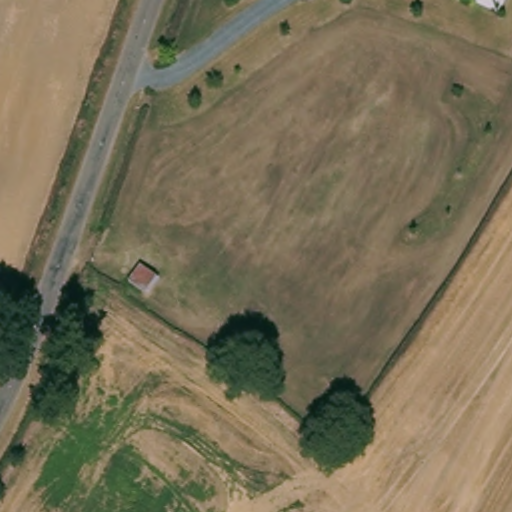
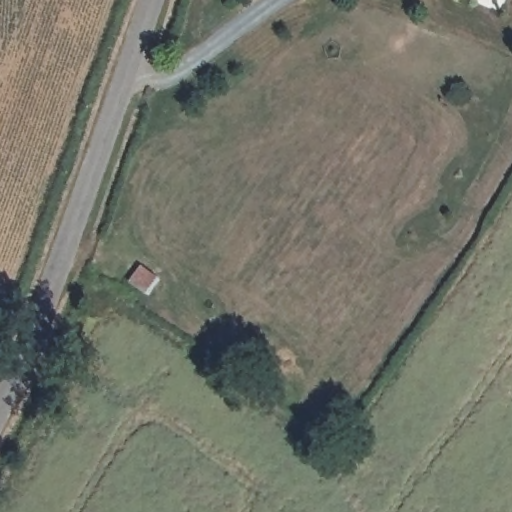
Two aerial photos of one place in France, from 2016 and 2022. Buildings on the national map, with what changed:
unchanged [(162,279),(147,295),(126,282),(140,261),(162,279)]

